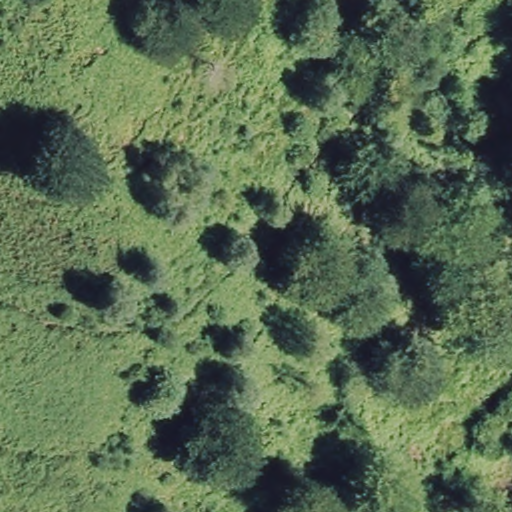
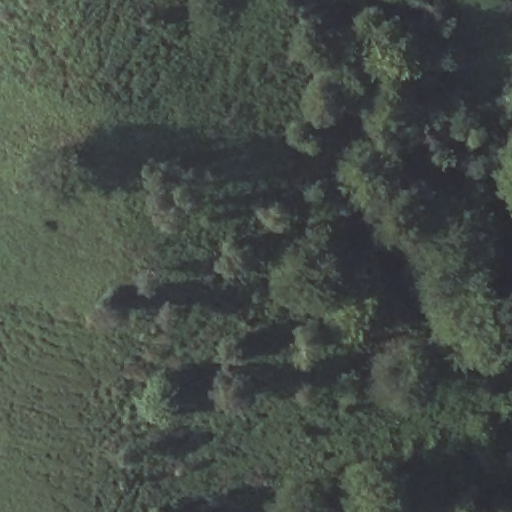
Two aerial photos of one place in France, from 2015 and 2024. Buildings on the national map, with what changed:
[]

